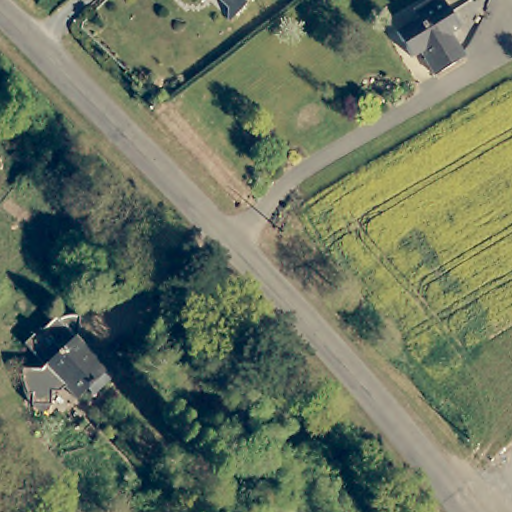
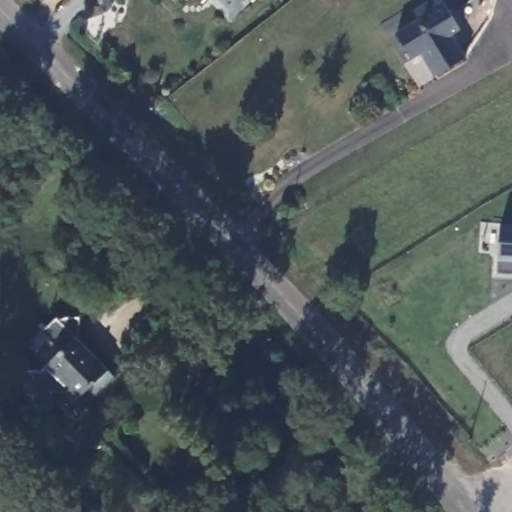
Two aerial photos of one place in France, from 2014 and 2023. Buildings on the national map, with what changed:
unchanged [(222,0),(247,0),(235,13),(222,0)]
unchanged [(455,26),(446,32),(460,55),(432,72),(418,50),(410,55),(395,33),(417,18),(412,10),(427,0),(438,0),(455,26)]
new [(501,223),(512,224),(512,273),(495,272),(501,223)]
unchanged [(97,397),(91,391),(80,401),(69,389),(64,394),(56,394),(56,408),(36,407),(37,397),(32,397),(30,393),(29,390),(28,386),(27,382),(26,378),(26,375),(26,372),(44,371),(48,367),(27,345),(44,330),(46,334),(61,320),(64,323),(65,322),(67,321),(69,320),(71,319),(74,319),(75,319),(77,319),(79,318),(84,319),(85,319),(83,343),(110,372),(117,379),(97,397)]

